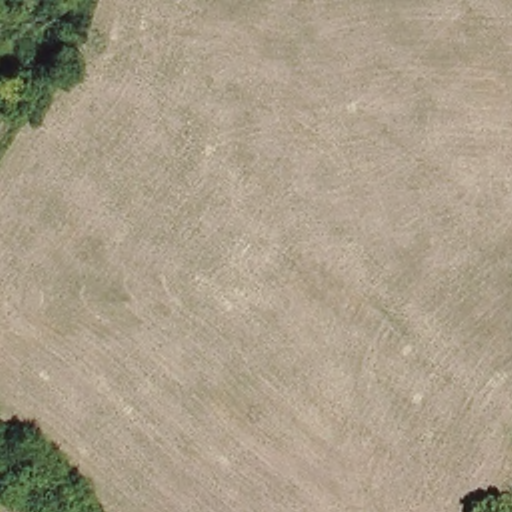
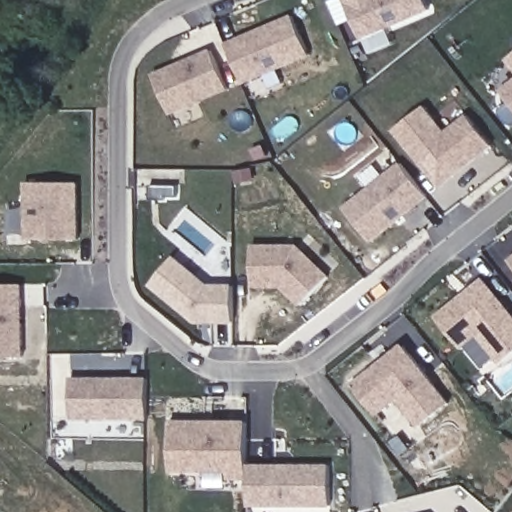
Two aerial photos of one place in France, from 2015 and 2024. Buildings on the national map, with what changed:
new [(430,10),(362,40),(345,0),(425,0),(430,10)]
new [(294,13),(311,56),(245,85),(226,42),(294,13)]
new [(213,48),(231,90),(172,115),(154,74),(213,48)]
new [(507,60),(512,56),(512,66),(507,60)]
new [(512,81),(512,104),(501,90),(512,81)]
new [(427,105),(448,130),(468,114),(494,146),(441,188),(395,131),(427,105)]
new [(401,161),(430,197),(372,243),(344,207),(401,161)]
new [(25,182),(80,182),(81,241),(25,239),(25,182)]
new [(253,243),(300,244),(331,275),(300,306),(281,287),(254,288),(253,243)]
new [(175,255),(211,284),(234,284),(235,323),(196,324),(151,286),(175,255)]
new [(512,258),(512,264),(509,260),(512,258)]
new [(485,276),(512,311),(512,354),(499,364),(478,336),(462,349),(436,316),(485,276)]
new [(23,357),(0,357),(0,284),(23,284),(23,357)]
new [(404,343),(452,402),(419,428),(398,401),(395,402),(378,416),(352,384),(404,343)]
new [(148,377),(148,420),(71,420),(71,377),(148,377)]
new [(247,420),(246,463),(330,464),(330,507),(247,507),(246,480),(228,480),(228,472),(170,471),(171,420),(247,420)]

